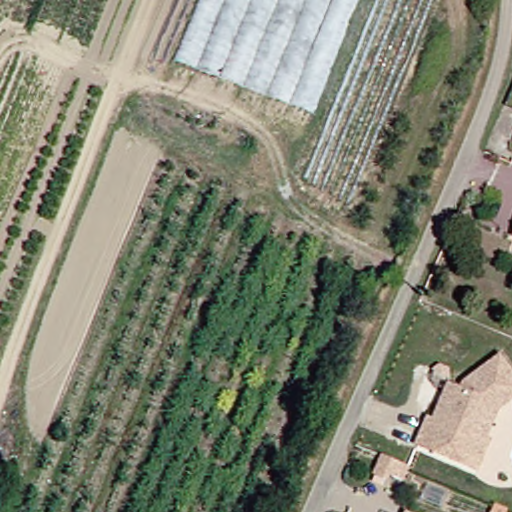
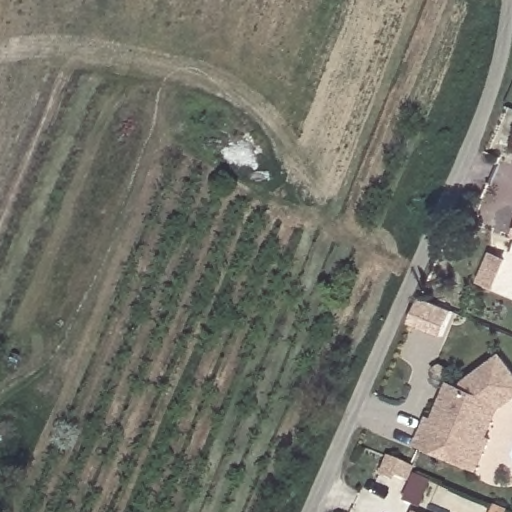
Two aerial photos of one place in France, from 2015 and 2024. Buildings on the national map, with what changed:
demolished [(346,0),(298,112),(148,50),(168,0),(346,0)]
unchanged [(508,239),(512,229),(512,241),(508,239)]
new [(420,299),(451,313),(440,339),(408,324),(420,299)]
unchanged [(487,435),(490,437),(477,467),(470,463),(461,460),(418,441),(430,415),(435,417),(451,381),(463,387),(466,380),(503,354),(512,367),(512,398),(500,407),(487,435)]
unchanged [(380,454),(403,464),(404,465),(395,484),(395,483),(371,473),(380,454)]

